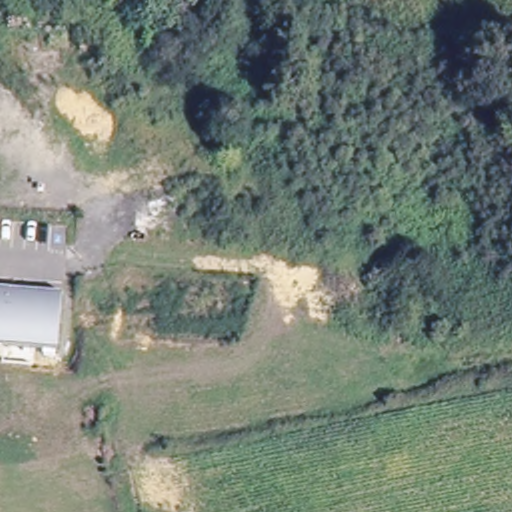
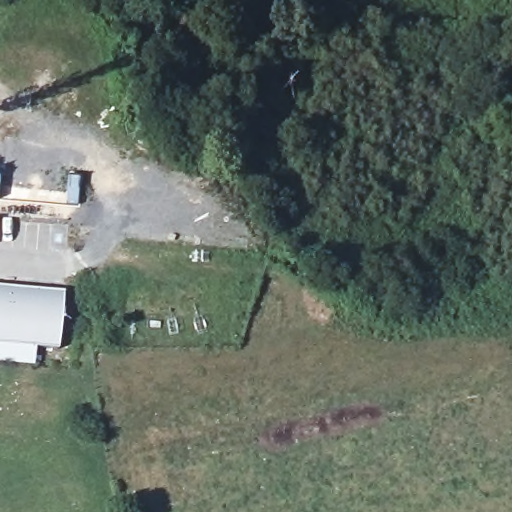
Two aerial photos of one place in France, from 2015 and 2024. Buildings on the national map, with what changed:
unchanged [(0,290),(64,296),(59,341),(58,353),(0,347),(0,290)]

